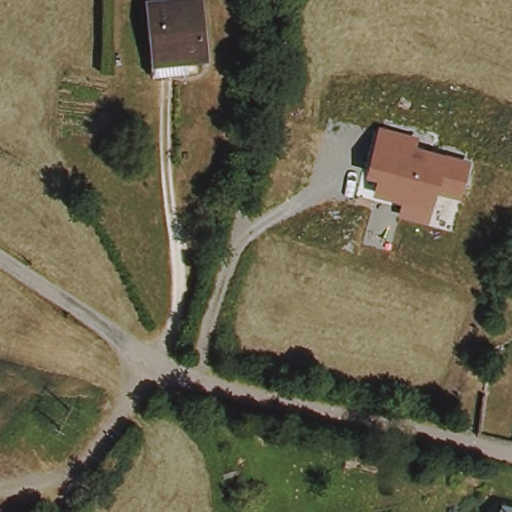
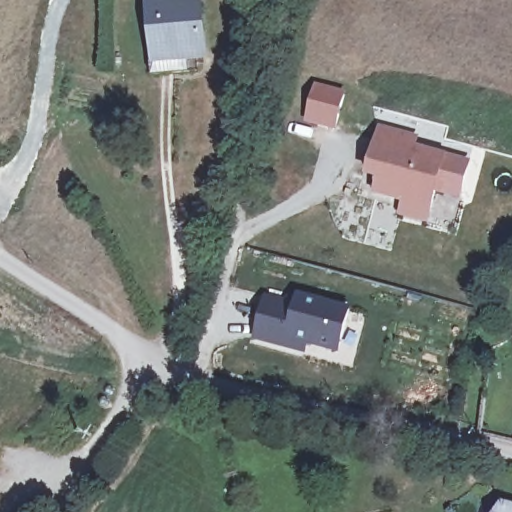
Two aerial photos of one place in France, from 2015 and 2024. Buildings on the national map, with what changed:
unchanged [(156,63),(151,4),(150,0),(190,0),(191,1),(198,0),(202,60),(156,63)]
unchanged [(464,200),(438,193),(429,224),(398,217),(401,204),(374,197),(378,181),(367,178),(381,126),(422,137),(419,147),(475,161),(464,200)]
new [(266,292),(294,299),(296,292),(350,306),(339,354),(308,346),(306,355),(253,342),(266,292)]
unchanged [(509,505),(512,506),(512,512),(507,512),(509,505)]

